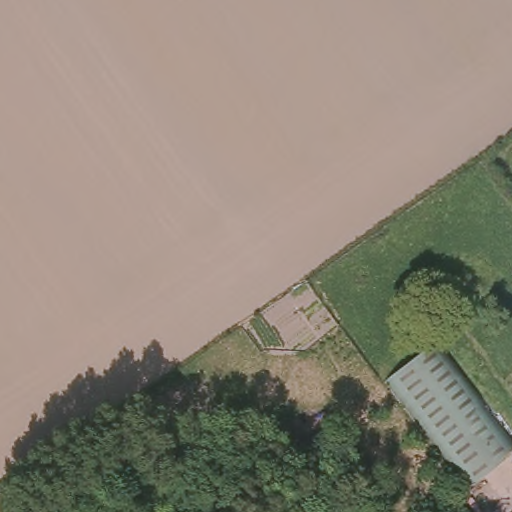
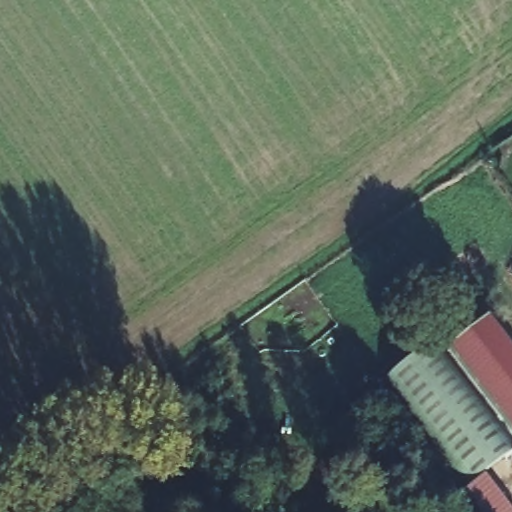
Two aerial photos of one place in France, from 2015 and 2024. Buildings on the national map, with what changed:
new [(512,437),(448,353),(489,318),(512,348),(512,437)]
unchanged [(436,337),(512,437),(512,451),(465,487),(383,377),(436,337)]
unchanged [(485,477),(511,512),(479,512),(465,493),(485,477)]
unchanged [(12,491),(25,512),(0,512),(0,498),(12,491)]

